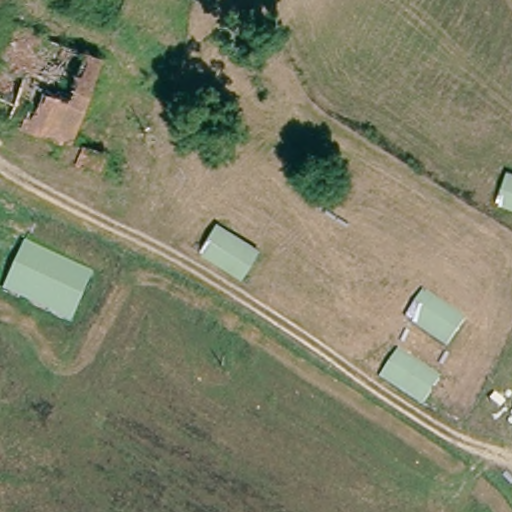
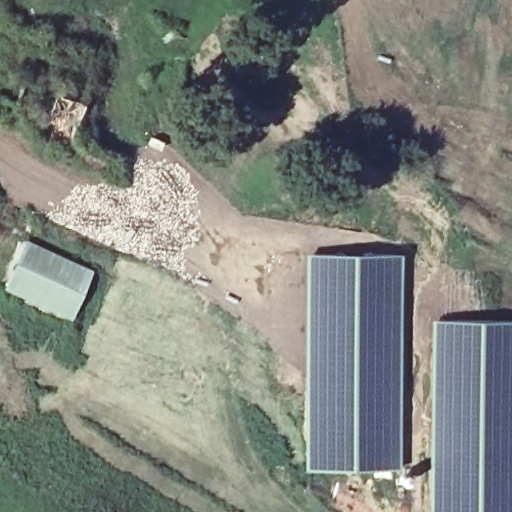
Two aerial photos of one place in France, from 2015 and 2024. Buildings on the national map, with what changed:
demolished [(62,151),(66,140),(0,112),(0,83),(22,24),(99,57),(68,136),(102,150),(96,165),(62,151)]
unchanged [(24,240),(92,271),(70,322),(2,290),(24,240)]
new [(303,252),(401,252),(400,470),(302,470),(303,252)]
new [(512,320),(512,512),(429,512),(429,459),(430,318),(512,320)]

